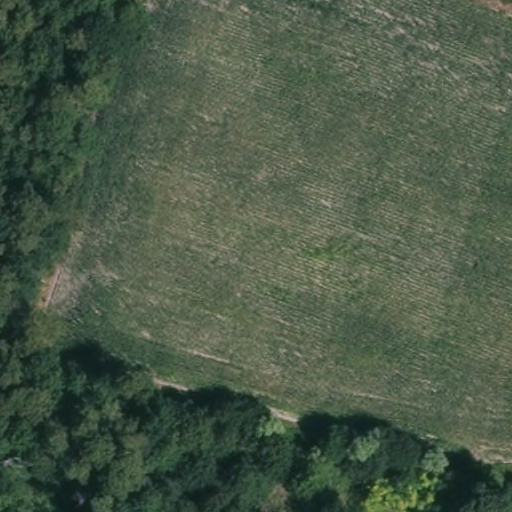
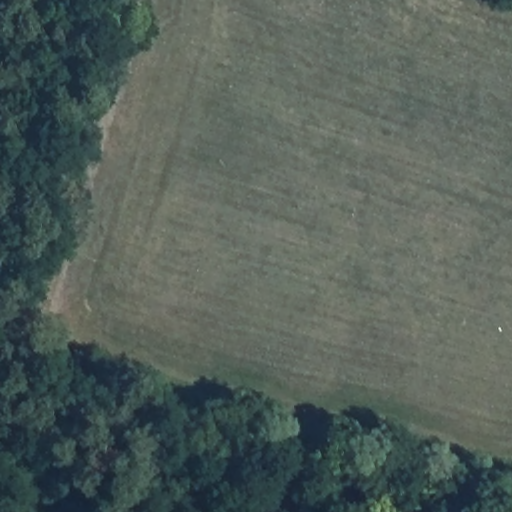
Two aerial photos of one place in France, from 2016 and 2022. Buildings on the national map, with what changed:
[]

